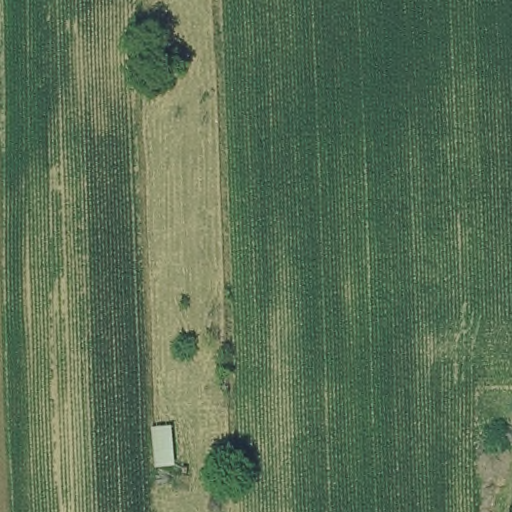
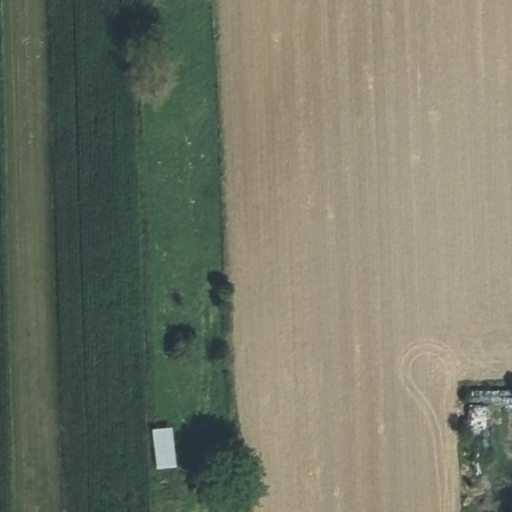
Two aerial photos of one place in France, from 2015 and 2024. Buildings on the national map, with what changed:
unchanged [(173,425),(176,466),(153,467),(152,425),(173,425)]

